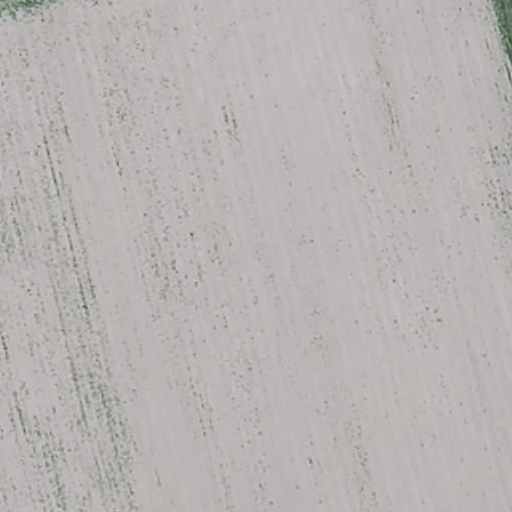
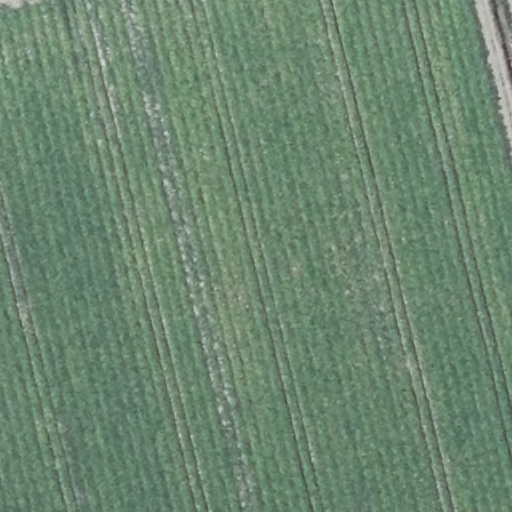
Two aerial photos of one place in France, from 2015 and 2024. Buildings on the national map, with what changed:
[]

